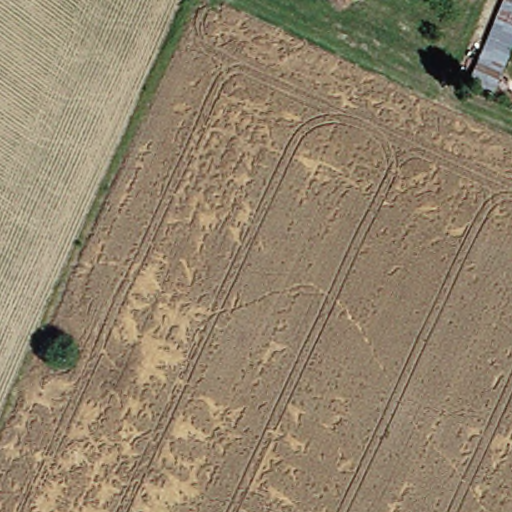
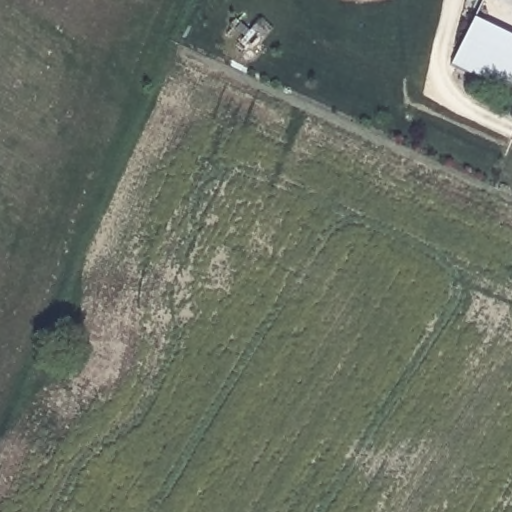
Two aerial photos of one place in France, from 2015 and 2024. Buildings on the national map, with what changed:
new [(341,0),(380,0),(381,2),(342,4),(341,0)]
demolished [(477,74),(507,0),(512,0),(512,52),(500,82),(477,74)]
new [(452,67),(474,22),(512,40),(512,96),(452,67)]

